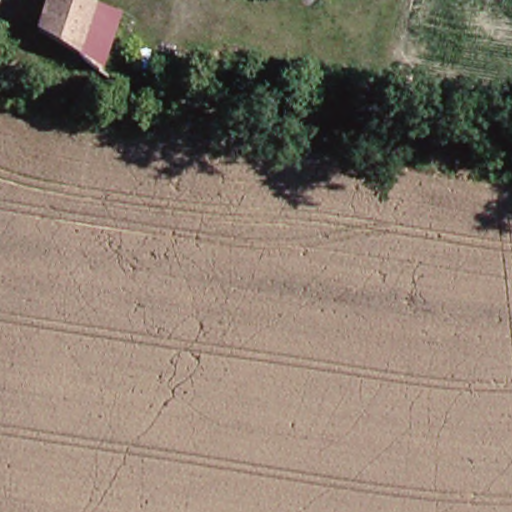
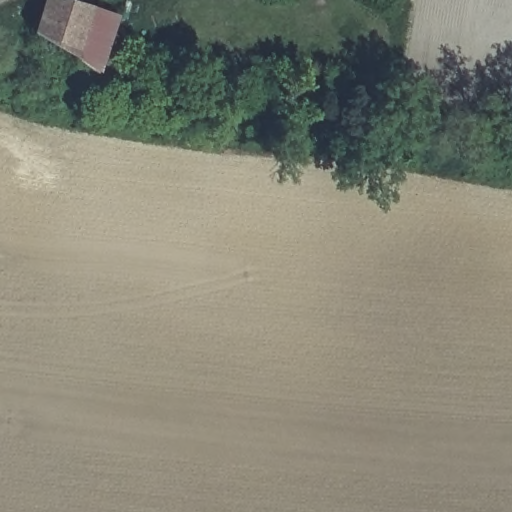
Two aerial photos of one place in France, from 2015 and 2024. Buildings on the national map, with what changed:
unchanged [(44,38),(57,1),(107,16),(83,63),(44,38)]
unchanged [(107,16),(130,22),(101,74),(83,63),(107,16)]

